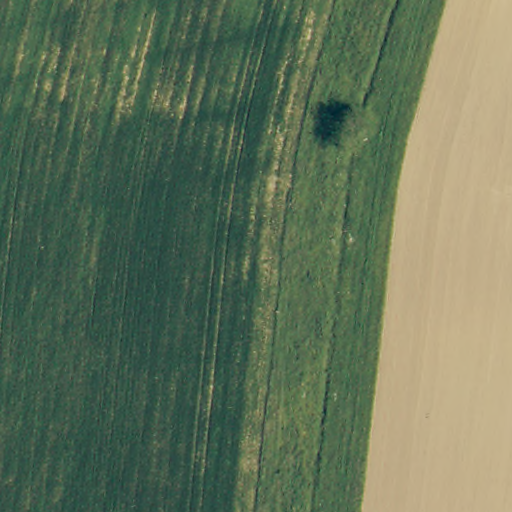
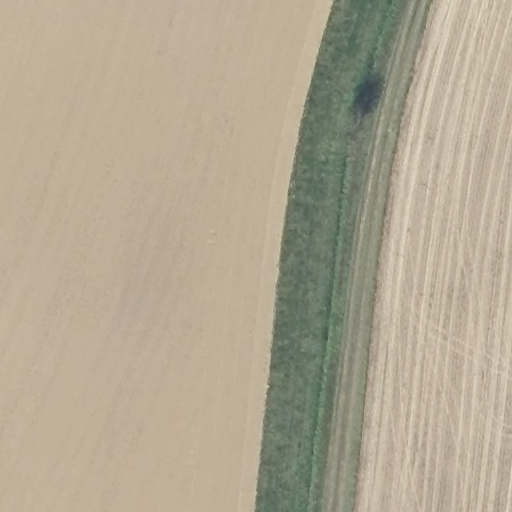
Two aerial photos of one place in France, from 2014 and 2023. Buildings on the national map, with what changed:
[]

